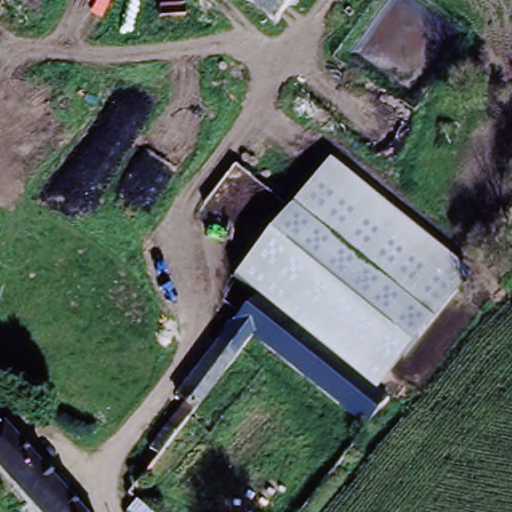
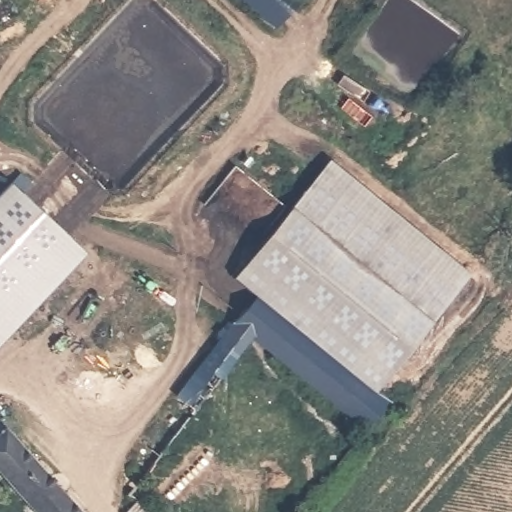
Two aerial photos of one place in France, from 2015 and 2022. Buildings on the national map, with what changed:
demolished [(0,14),(0,0),(5,0),(9,4),(0,14)]
unchanged [(275,31),(238,0),(301,0),(275,31)]
unchanged [(0,9),(0,5),(2,7),(0,9)]
unchanged [(332,157),(470,273),(389,376),(375,364),(360,382),(256,298),(235,277),(332,157)]
new [(0,341),(0,190),(10,180),(86,251),(0,341)]
unchanged [(234,320),(256,298),(360,383),(375,364),(389,376),(373,396),(395,412),(375,438),(251,342),(160,462),(150,454),(186,405),(177,398),(234,320)]
unchanged [(0,423),(1,422),(82,512),(32,512),(0,477),(0,423)]
unchanged [(153,512),(131,512),(140,501),(153,512)]

